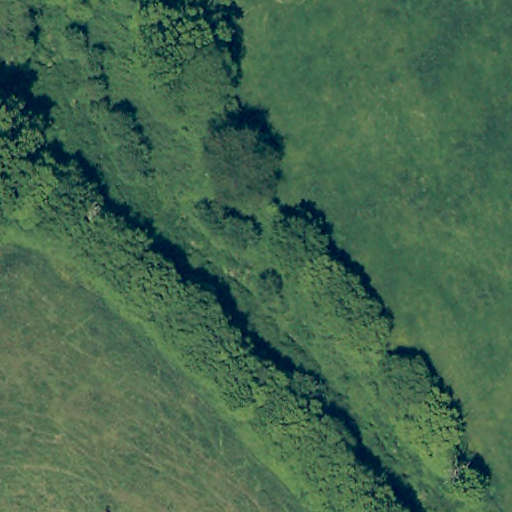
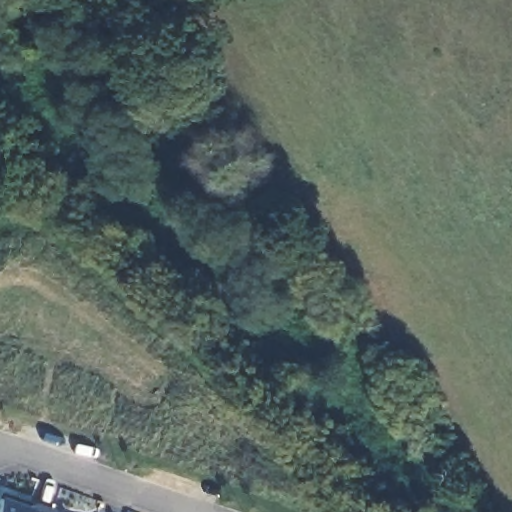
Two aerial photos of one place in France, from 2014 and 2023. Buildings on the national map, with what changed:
new [(31,507),(32,503),(54,509),(53,512),(0,512),(0,498),(31,507)]

